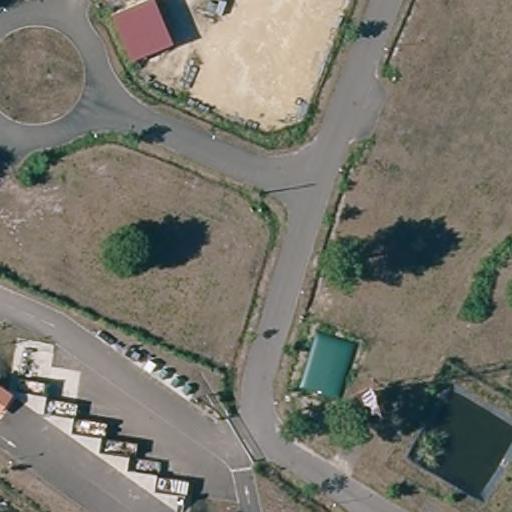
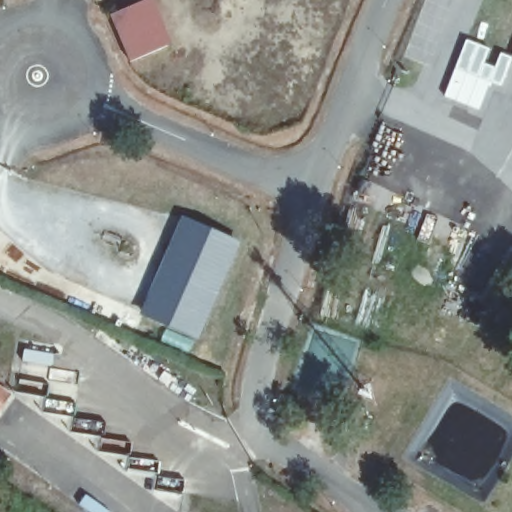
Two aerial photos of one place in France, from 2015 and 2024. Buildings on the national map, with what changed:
unchanged [(167,44),(130,60),(129,60),(110,19),(108,15),(141,0),(148,0),(167,44)]
new [(481,42),(475,57),(500,66),(505,52),(512,55),(512,69),(506,84),(495,79),(483,107),(443,91),(465,36),(481,42)]
new [(241,241),(199,339),(140,313),(183,216),(241,241)]
unchanged [(14,392),(0,412),(0,383),(14,392)]

